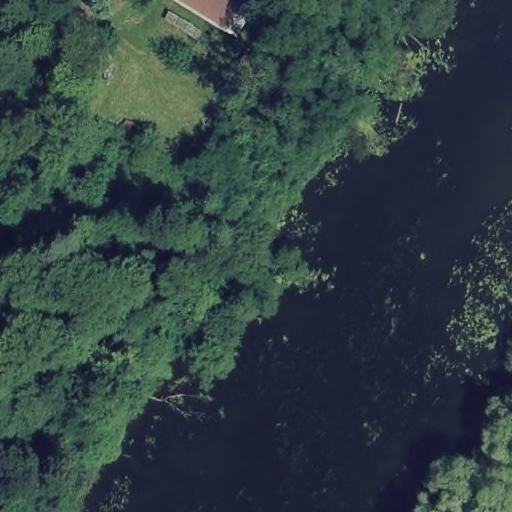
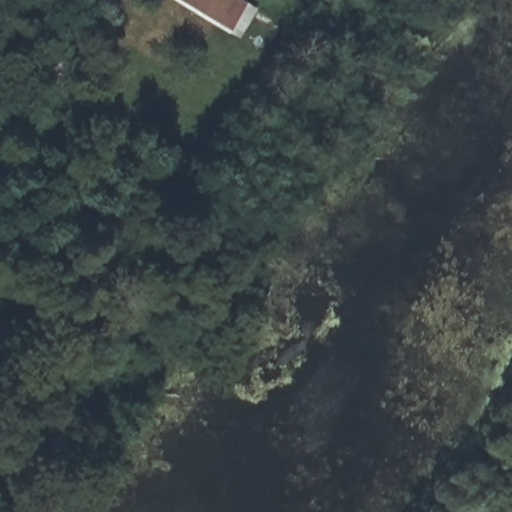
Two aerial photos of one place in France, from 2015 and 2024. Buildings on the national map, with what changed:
unchanged [(259,7),(243,35),(180,0),(248,0),(259,7)]

